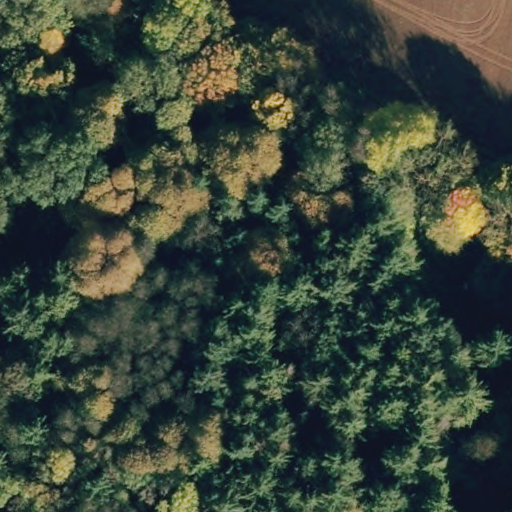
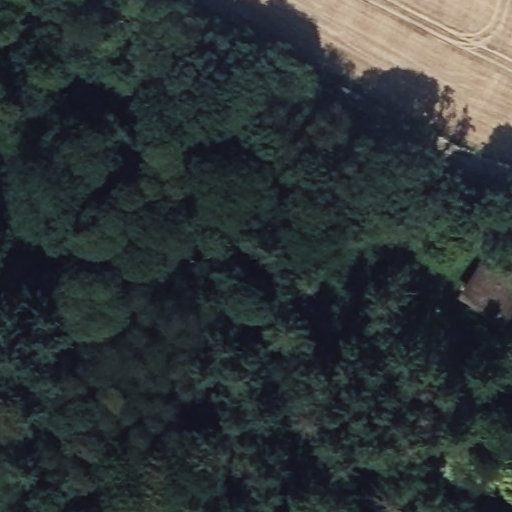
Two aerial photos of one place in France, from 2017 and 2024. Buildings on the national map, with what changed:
unchanged [(512,322),(510,325),(460,289),(488,252),(512,268),(512,322)]

